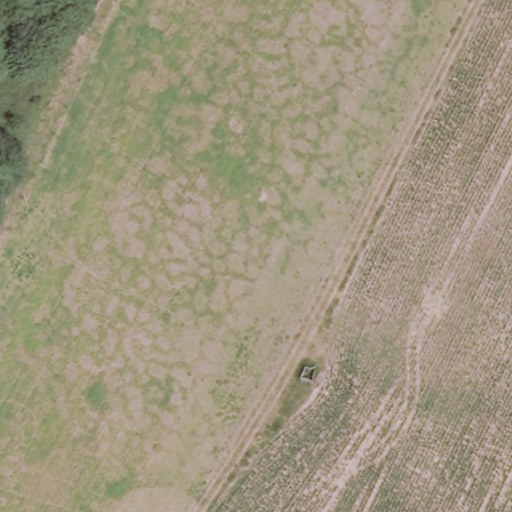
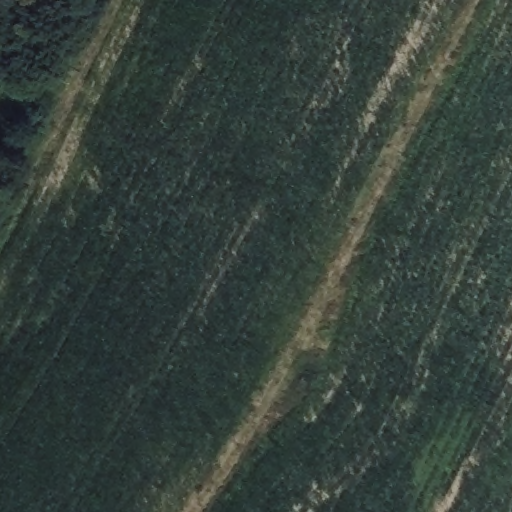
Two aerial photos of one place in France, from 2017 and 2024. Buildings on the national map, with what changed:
unchanged [(4,135),(0,145),(0,134),(4,135)]

